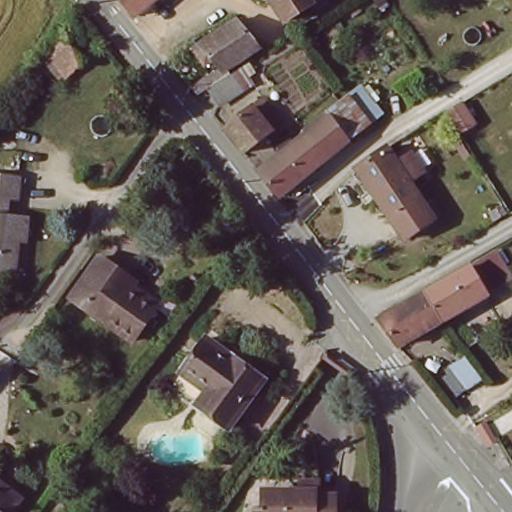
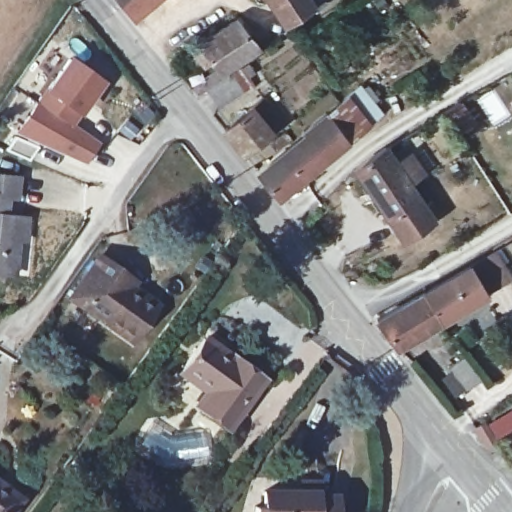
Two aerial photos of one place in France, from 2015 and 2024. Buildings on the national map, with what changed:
unchanged [(122,0),(152,0),(135,14),(122,0)]
unchanged [(279,25),(263,0),(304,0),(309,6),(279,25)]
unchanged [(221,67),(202,41),(240,17),(260,42),(227,65),(232,72),(199,94),(192,85),(221,67)]
demolished [(67,20),(95,55),(58,88),(37,62),(67,20)]
new [(112,79),(87,115),(85,113),(79,124),(104,142),(91,162),(20,132),(52,88),(77,53),(112,79)]
unchanged [(281,184),(265,165),(303,137),(313,130),(311,126),(355,92),(375,120),(285,190),(281,184)]
unchanged [(221,127),(262,97),(263,96),(282,119),(278,121),(240,150),(221,127)]
unchanged [(465,125),(449,137),(437,116),(454,105),(465,125)]
unchanged [(395,164),(408,155),(420,175),(407,184),(430,220),(402,240),(354,167),(385,149),(395,164)]
unchanged [(13,187),(12,197),(0,195),(0,175),(16,176),(13,187)]
unchanged [(6,272),(0,271),(0,216),(12,219),(6,272)]
unchanged [(465,270),(496,252),(512,279),(512,284),(440,323),(423,294),(465,270)]
unchanged [(99,255),(133,277),(129,286),(155,306),(131,340),(70,296),(99,255)]
unchanged [(440,323),(395,348),(374,322),(413,300),(417,297),(423,294),(440,323)]
unchanged [(251,365),(248,373),(261,383),(231,425),(203,402),(210,391),(183,370),(209,333),(251,365)]
unchanged [(449,398),(434,372),(452,361),(455,367),(467,388),(449,398)]
unchanged [(337,512),(265,512),(265,494),(301,495),(302,485),(320,486),(321,495),(337,497),(337,512)]
unchanged [(4,512),(0,512),(0,489),(14,498),(4,512)]

